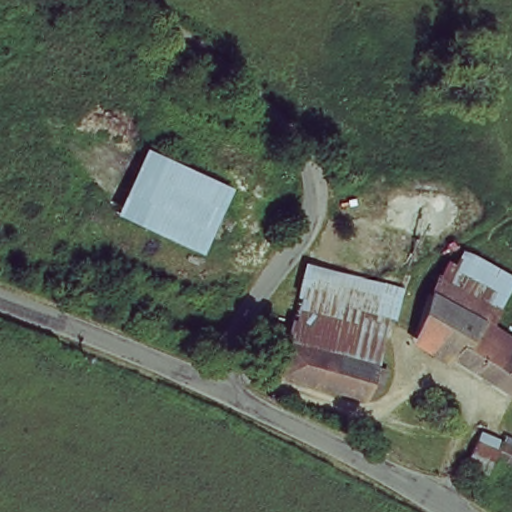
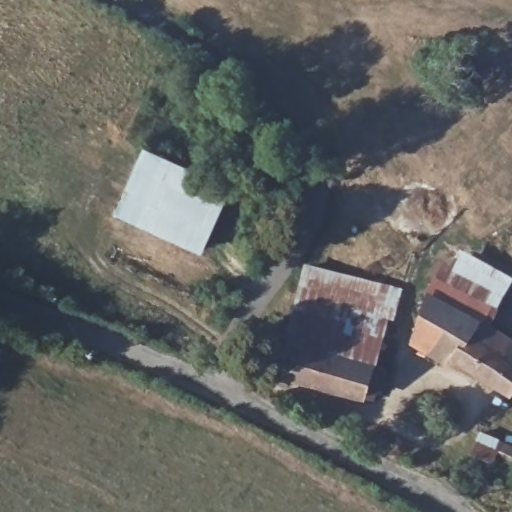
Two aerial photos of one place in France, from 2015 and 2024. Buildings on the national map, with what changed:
unchanged [(146,149),(233,189),(202,255),(115,212),(146,149)]
unchanged [(509,280),(488,315),(437,283),(460,247),(509,280)]
unchanged [(307,262),(392,282),(379,339),(294,318),(307,262)]
unchanged [(427,302),(437,283),(488,315),(477,332),(427,302)]
unchanged [(512,355),(512,399),(510,402),(415,344),(427,302),(477,332),(512,355)]
unchanged [(288,350),(294,318),(379,339),(373,370),(288,350)]
unchanged [(389,374),(381,410),(281,387),(288,350),(373,370),(389,374)]
unchanged [(480,456),(486,445),(512,457),(512,472),(480,456)]

